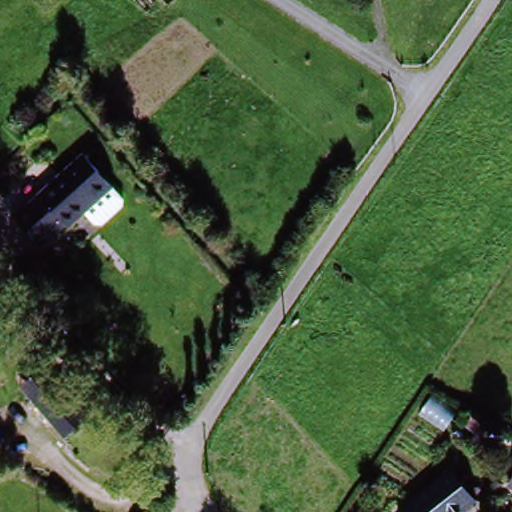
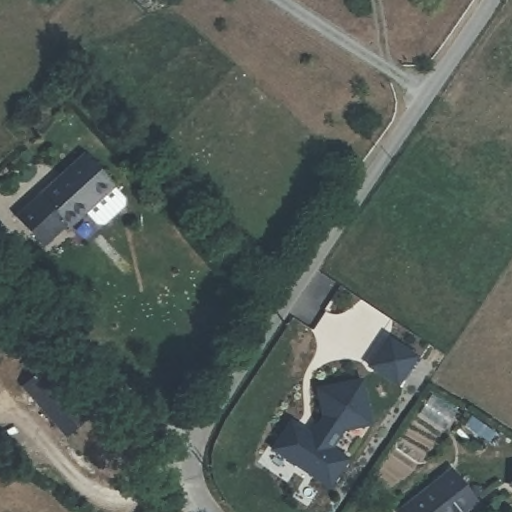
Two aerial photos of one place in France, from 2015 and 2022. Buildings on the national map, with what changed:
unchanged [(84,167),(109,198),(62,235),(55,226),(29,245),(12,224),(84,167)]
new [(392,340),(422,358),(403,388),(373,369),(392,340)]
new [(295,426),(316,440),(328,421),(322,393),(367,383),(376,428),(348,434),(336,453),(354,464),(335,493),(276,455),(295,426)]
unchanged [(478,509),(473,512),(401,512),(399,510),(454,474),(478,509)]
unchanged [(512,483),(512,486),(511,485),(512,483)]

